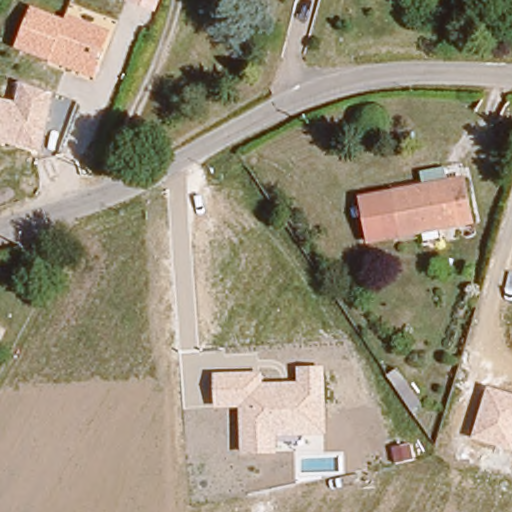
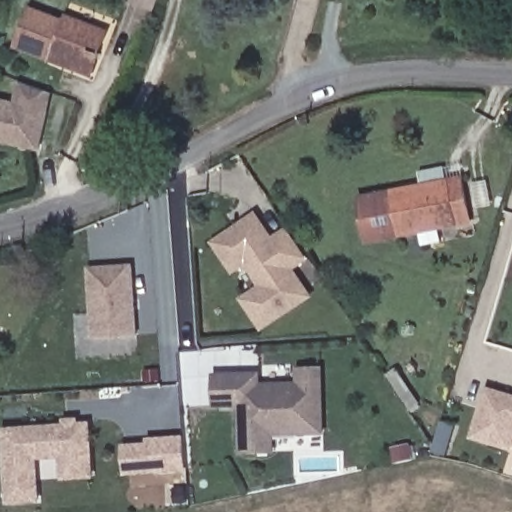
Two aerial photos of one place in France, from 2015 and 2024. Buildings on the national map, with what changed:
unchanged [(162,0),(158,9),(135,0),(162,0)]
unchanged [(25,15),(60,23),(62,14),(109,26),(104,47),(96,44),(93,62),(54,54),(52,59),(19,51),(25,15)]
unchanged [(0,141),(0,100),(13,103),(17,84),(54,94),(40,152),(0,141)]
unchanged [(357,196),(460,181),(468,224),(366,239),(357,196)]
new [(251,297),(263,289),(247,264),(235,272),(216,245),(236,231),(256,217),(272,242),(287,232),(307,259),(291,270),(310,297),(264,329),(254,313),(245,301),(251,297)]
unchanged [(138,337),(96,340),(91,271),(133,268),(138,337)]
unchanged [(325,436),(298,436),(298,441),(276,440),(276,454),(241,453),(240,408),(214,408),(214,374),(262,371),(263,382),(295,381),(295,366),(322,366),(325,436)]
unchanged [(471,439),(485,388),(512,395),(512,451),(471,439)]
new [(42,503),(10,502),(5,427),(91,421),(96,479),(61,482),(59,460),(40,462),(42,503)]
new [(125,476),(122,444),(147,442),(147,438),(184,435),(186,472),(125,476)]

